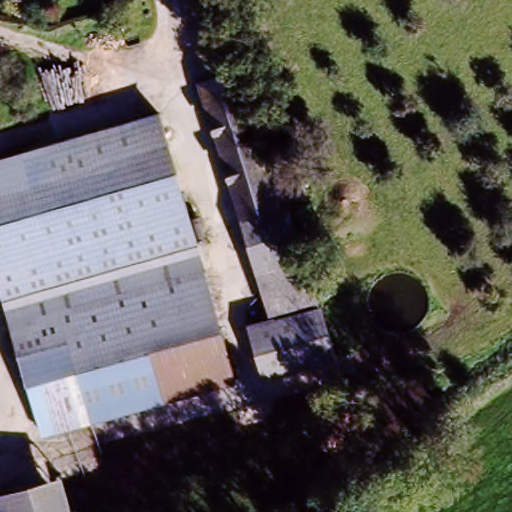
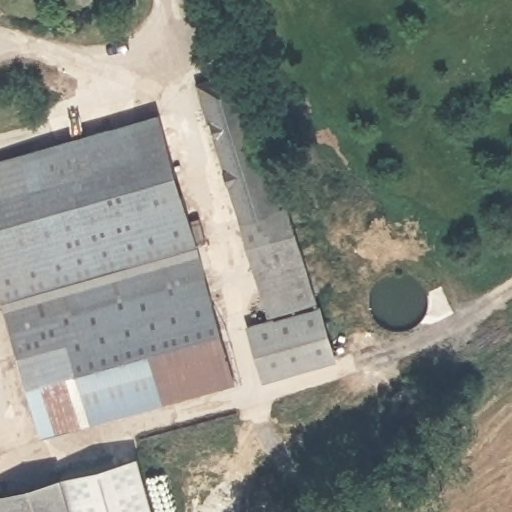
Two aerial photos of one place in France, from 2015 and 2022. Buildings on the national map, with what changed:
unchanged [(245,325),(269,317),(247,244),(271,236),(265,214),(240,221),(202,85),(233,76),(238,98),(245,96),(270,176),(298,166),(309,199),(288,207),(319,304),(337,359),(263,381),(245,325)]
unchanged [(0,298),(0,165),(84,136),(156,113),(231,385),(43,441),(0,298)]
new [(61,476),(141,458),(156,512),(71,512),(61,476)]
unchanged [(61,476),(71,512),(14,512),(8,491),(61,476)]

